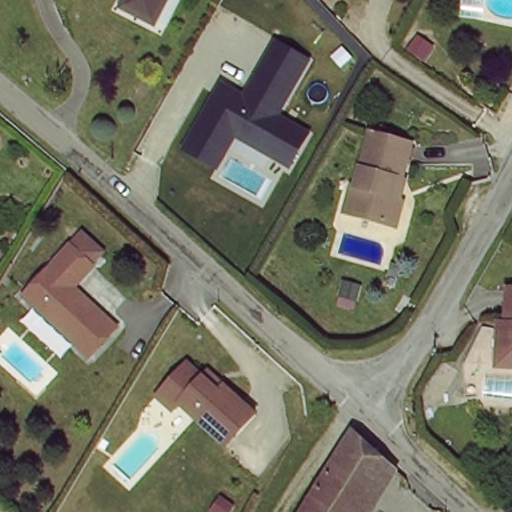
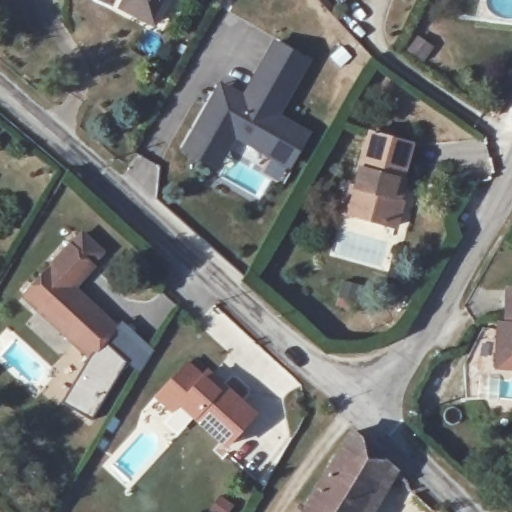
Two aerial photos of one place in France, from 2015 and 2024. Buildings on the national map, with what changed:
unchanged [(118,5),(120,0),(162,0),(151,22),(118,5)]
unchanged [(220,80),(243,93),(274,39),(311,59),(282,112),(311,130),(290,169),(238,140),(219,169),(180,150),(220,80)]
unchanged [(349,181),(353,182),(369,126),(410,140),(402,176),(398,175),(394,191),(405,195),(396,224),(353,213),(341,210),(349,181)]
unchanged [(114,328),(104,340),(88,356),(23,295),(69,246),(83,233),(102,251),(89,265),(69,286),(114,328)]
unchanged [(496,348),(496,328),(496,316),(507,316),(510,285),(512,285),(512,364),(495,363),(496,348)]
new [(114,328),(120,322),(156,355),(143,377),(129,363),(104,340),(114,328)]
new [(129,363),(93,421),(60,401),(88,356),(104,340),(129,363)]
unchanged [(225,449),(178,406),(171,413),(155,398),(185,365),(201,380),(206,375),(221,388),(253,418),(225,449)]
unchanged [(339,460),(359,435),(394,466),(364,512),(306,512),(339,460)]

